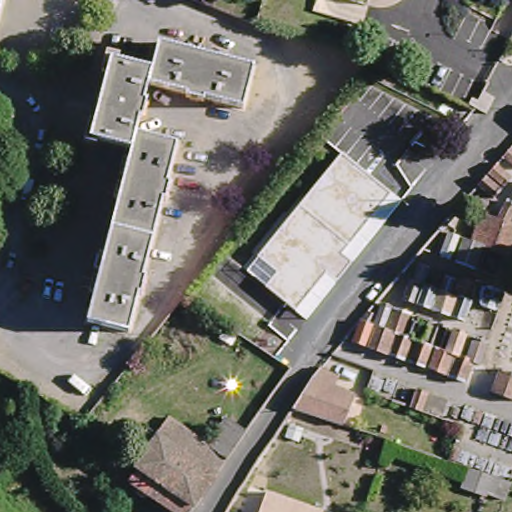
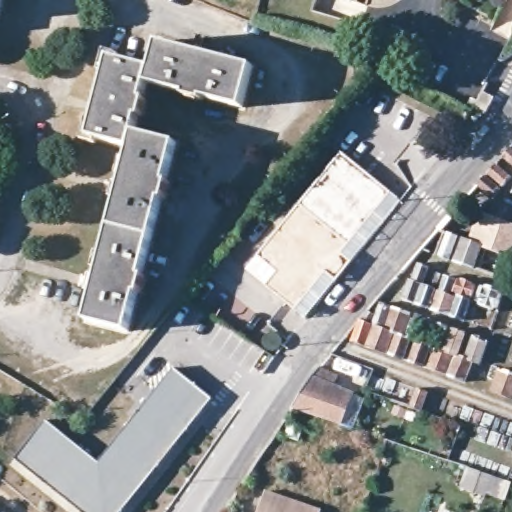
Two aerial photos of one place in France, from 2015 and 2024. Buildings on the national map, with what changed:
unchanged [(0,20),(0,0),(5,0),(0,20)]
unchanged [(512,0),(512,2),(505,0),(512,0)]
unchanged [(160,77),(167,52),(260,79),(250,121),(212,111),(210,114),(193,110),(193,105),(155,95),(151,110),(155,112),(150,129),(146,129),(141,144),(185,155),(175,193),(178,195),(173,211),(170,211),(160,247),(150,285),(153,287),(148,305),(144,305),(141,317),(134,342),(91,330),(108,272),(135,171),(138,157),(99,146),(118,66),(160,77)]
unchanged [(267,285),(278,271),(260,255),(341,154),(389,191),(341,252),(352,261),(338,280),(326,271),(295,308),(267,285)]
unchanged [(316,365),(334,373),(329,386),(354,395),(345,423),(292,404),(316,365)]
new [(213,400),(123,512),(80,512),(15,459),(46,421),(99,462),(174,370),(213,400)]
demolished [(135,470),(132,467),(155,434),(213,475),(187,512),(172,512),(128,481),(135,470)]
unchanged [(272,489),(327,509),(326,512),(263,512),(272,489)]

